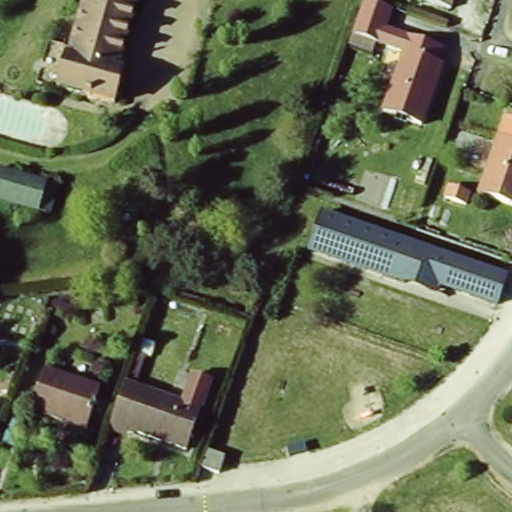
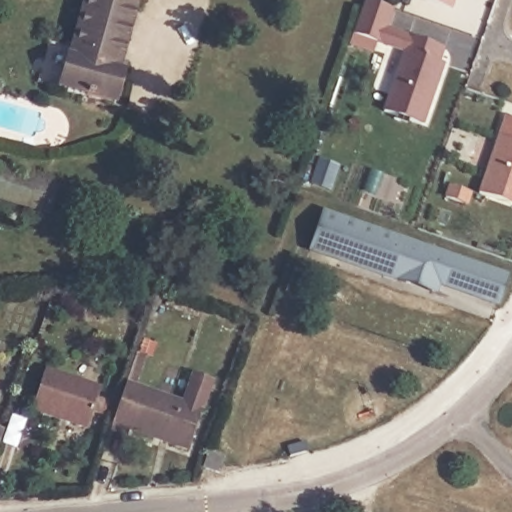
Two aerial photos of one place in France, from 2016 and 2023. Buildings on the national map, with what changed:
unchanged [(136,5),(121,68),(128,70),(118,105),(56,87),(65,53),(71,55),(85,0),(120,0),(136,5)]
unchanged [(456,16),(411,0),(462,0),(456,16)]
unchanged [(403,21),(395,43),(410,49),(404,64),(363,47),(378,6),(403,21)]
unchanged [(447,60),(441,75),(446,76),(424,134),(387,122),(408,65),(404,64),(410,49),(411,45),(447,60)]
unchanged [(512,206),(484,196),(511,124),(512,124),(512,206)]
unchanged [(49,186),(42,214),(0,203),(0,190),(5,174),(49,186)]
unchanged [(476,196),(469,211),(449,202),(456,187),(476,196)]
unchanged [(324,209),(509,272),(498,306),(439,286),(437,295),(307,250),(324,209)]
unchanged [(106,393),(89,435),(34,414),(52,373),(106,393)]
unchanged [(197,375),(214,381),(203,410),(183,459),(105,430),(124,380),(186,403),(197,375)]
unchanged [(224,451),(218,469),(201,462),(208,445),(224,451)]

